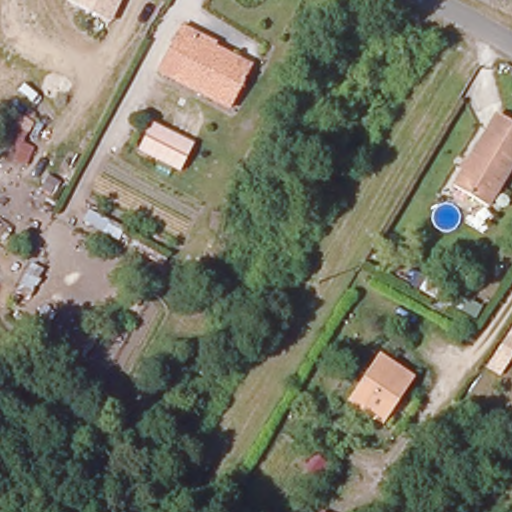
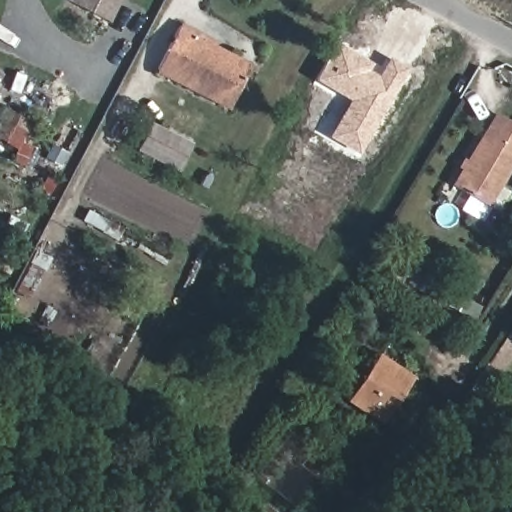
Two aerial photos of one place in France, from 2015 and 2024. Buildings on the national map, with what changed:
unchanged [(171,81),(179,65),(164,56),(179,27),(195,35),(191,44),(209,54),(212,50),(235,63),(233,68),(250,79),(230,113),(171,81)]
new [(348,100),(314,80),(337,42),(373,63),(368,70),(378,74),(388,56),(408,68),(358,154),(327,136),(348,100)]
unchanged [(10,164),(14,149),(0,139),(13,108),(31,118),(19,143),(29,149),(23,168),(10,164)]
unchanged [(489,122),(512,136),(512,163),(488,202),(451,180),(489,122)]
unchanged [(180,172),(141,152),(153,124),(194,143),(180,172)]
unchanged [(464,302),(454,312),(423,294),(429,283),(464,302)]
unchanged [(348,403),(376,357),(407,378),(377,422),(348,403)]

